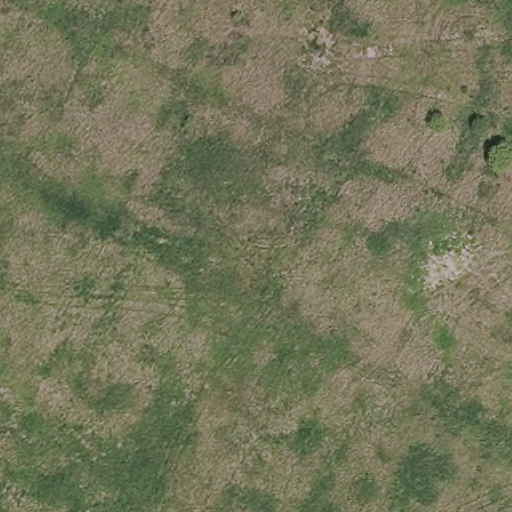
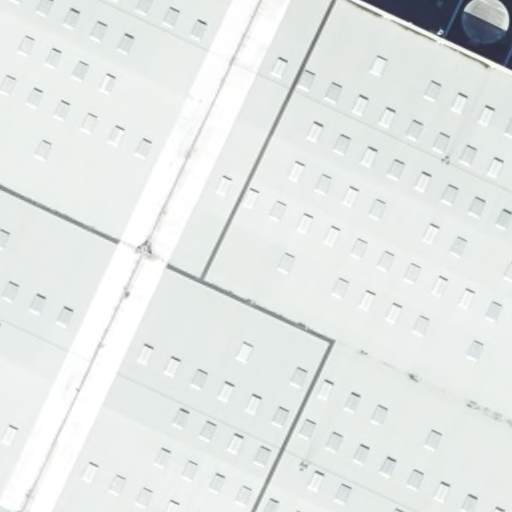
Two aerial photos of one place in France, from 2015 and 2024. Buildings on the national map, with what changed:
new [(0,0),(382,0),(512,61),(512,512),(0,512),(0,0)]
new [(382,0),(456,0),(443,29),(382,0)]
new [(504,57),(512,40),(512,61),(504,57)]

